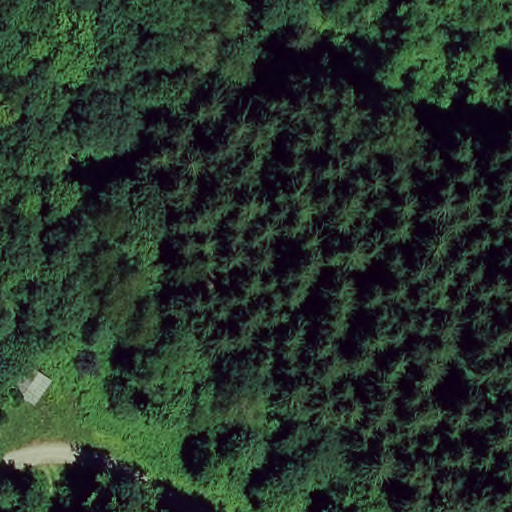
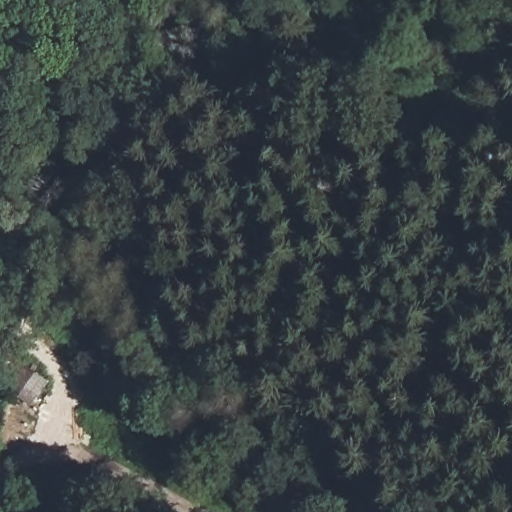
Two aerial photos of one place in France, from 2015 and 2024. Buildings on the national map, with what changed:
unchanged [(30,409),(4,392),(22,365),(47,384),(30,409)]

